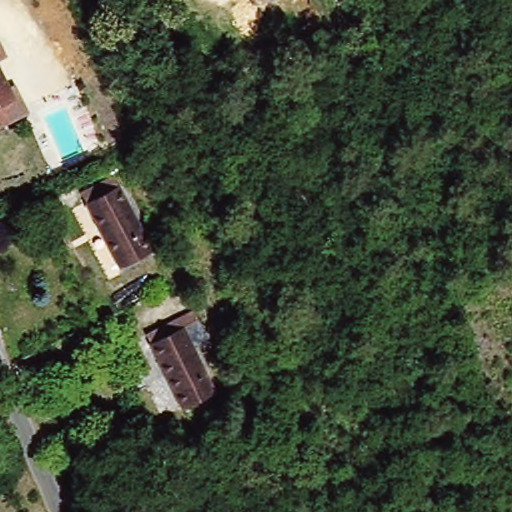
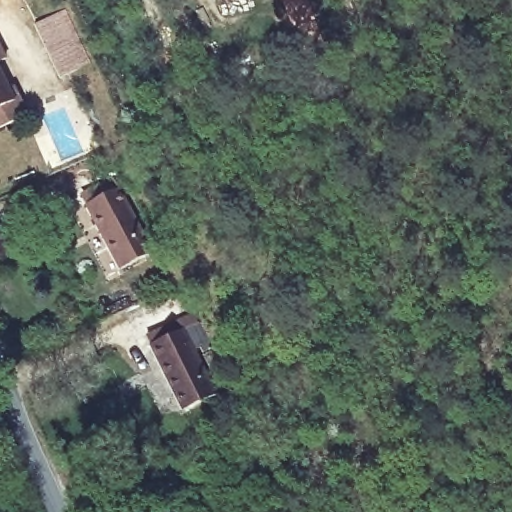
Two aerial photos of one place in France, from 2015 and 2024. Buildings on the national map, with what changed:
new [(60,78),(35,24),(69,9),(93,63),(60,78)]
unchanged [(8,58),(0,62),(0,44),(8,58)]
unchanged [(21,99),(30,116),(0,129),(0,65),(15,100),(21,99)]
unchanged [(115,275),(84,210),(80,202),(110,188),(115,196),(145,260),(115,275)]
unchanged [(190,356),(207,394),(175,409),(145,340),(142,333),(190,310),(193,319),(207,349),(190,356)]

